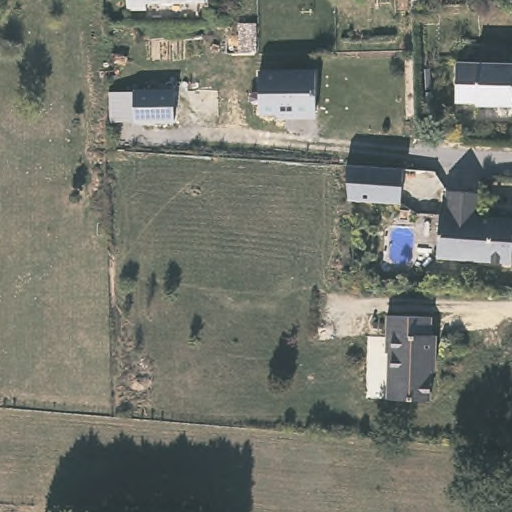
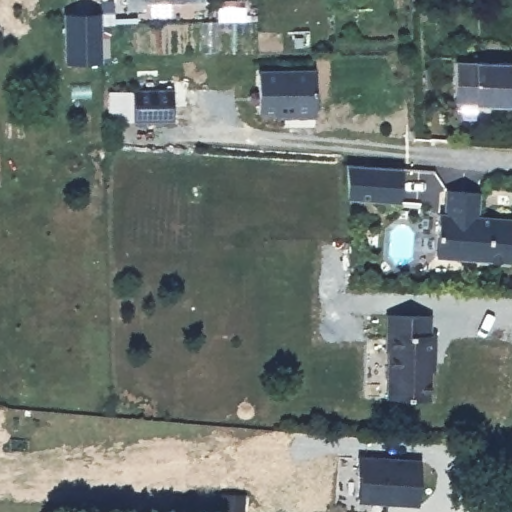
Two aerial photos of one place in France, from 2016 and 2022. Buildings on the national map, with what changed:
unchanged [(216,2),(150,3),(149,9),(129,8),(129,0),(216,0),(216,2)]
new [(103,16),(104,66),(67,67),(67,17),(103,16)]
unchanged [(510,65),(510,109),(474,109),(474,106),(454,106),(454,65),(510,65)]
unchanged [(314,70),(315,114),(257,112),(257,70),(314,70)]
unchanged [(132,86),(174,85),(173,120),(132,122),(132,86)]
unchanged [(395,201),(347,198),(345,164),(402,168),(400,191),(400,201),(395,201)]
unchanged [(483,209),(485,209),(485,212),(500,214),(500,210),(512,210),(512,253),(442,250),(444,207),(449,207),(450,183),(484,185),(483,209)]
unchanged [(428,314),(428,332),(433,332),(433,369),(430,372),(429,397),(386,397),(387,350),(385,350),(385,313),(428,314)]
new [(364,461),(427,465),(425,508),(392,506),(392,503),(365,502),(366,477),(363,477),(364,461)]

